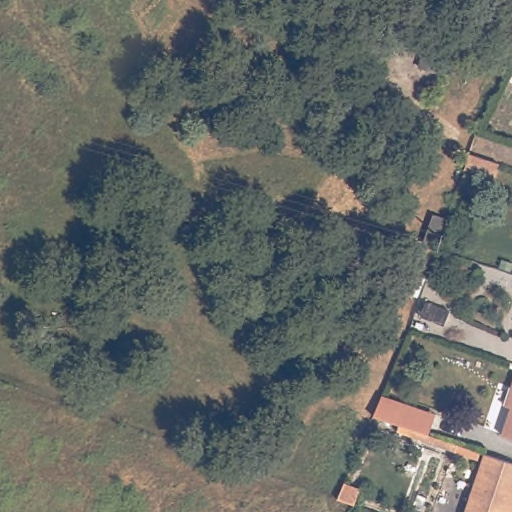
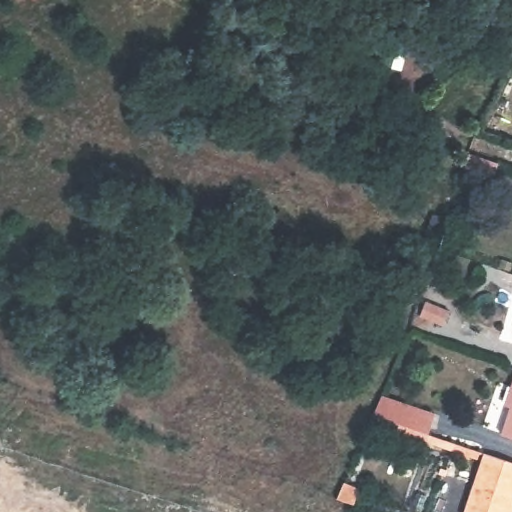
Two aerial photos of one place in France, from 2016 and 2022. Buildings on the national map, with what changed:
unchanged [(499,162),(494,177),(465,167),(470,152),(499,162)]
unchanged [(509,385),(512,378),(512,435),(500,431),(509,405),(503,403),(509,385)]
unchanged [(373,414),(383,392),(414,402),(436,410),(428,432),(407,425),(373,414)]
unchanged [(512,459),(512,501),(508,512),(463,512),(484,450),(512,459)]

